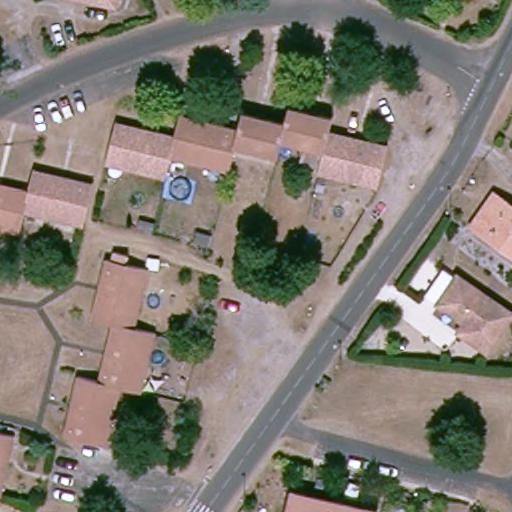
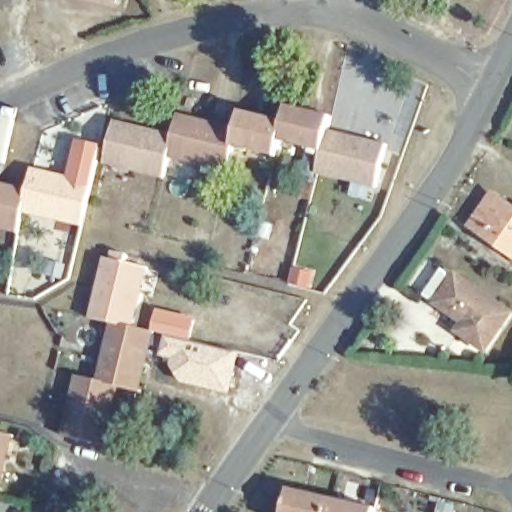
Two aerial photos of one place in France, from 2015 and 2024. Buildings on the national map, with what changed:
unchanged [(100,0),(117,0),(116,3),(100,0)]
unchanged [(288,105),(333,115),(328,133),(323,156),(278,146),(284,122),(288,105)]
unchanged [(278,146),(274,158),(229,149),(234,129),(237,111),(284,122),(278,146)]
unchanged [(229,149),(225,169),(167,155),(173,136),(177,116),(234,129),(229,149)]
unchanged [(167,155),(163,176),(102,162),(111,123),(173,136),(167,155)]
unchanged [(379,188),(319,174),(323,156),(328,133),(389,148),(379,188)]
unchanged [(86,227),(26,213),(31,194),(36,172),(95,185),(86,227)]
unchanged [(21,236),(0,232),(0,187),(31,194),(26,213),(21,236)]
unchanged [(481,234),(471,227),(494,195),(503,200),(512,207),(512,257),(481,234)]
unchanged [(132,331),(111,326),(91,321),(104,264),(146,275),(132,331)]
unchanged [(491,353),(462,333),(468,325),(439,304),(459,276),(512,313),(512,321),(491,353)]
new [(229,395),(181,384),(169,366),(170,359),(159,357),(164,335),(152,332),(156,310),(196,319),(191,342),(239,353),(229,395)]
unchanged [(132,331),(155,338),(141,395),(119,390),(99,384),(111,326),(132,331)]
unchanged [(106,448),(65,438),(81,380),(99,384),(119,390),(106,448)]
unchanged [(0,498),(0,438),(16,441),(1,498),(0,498)]
unchanged [(285,512),(291,489),(333,499),(330,512),(285,512)]
unchanged [(377,510),(376,512),(330,512),(333,499),(377,510)]

